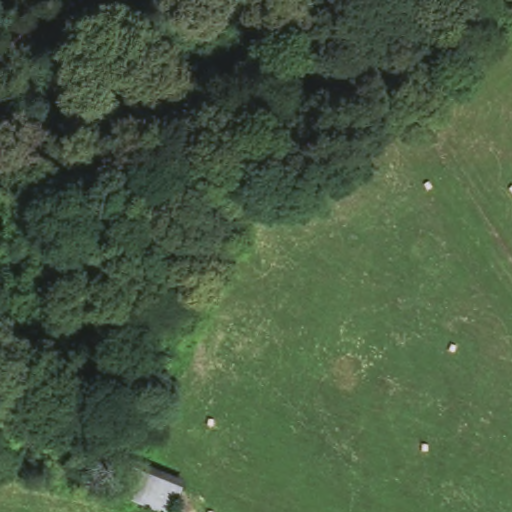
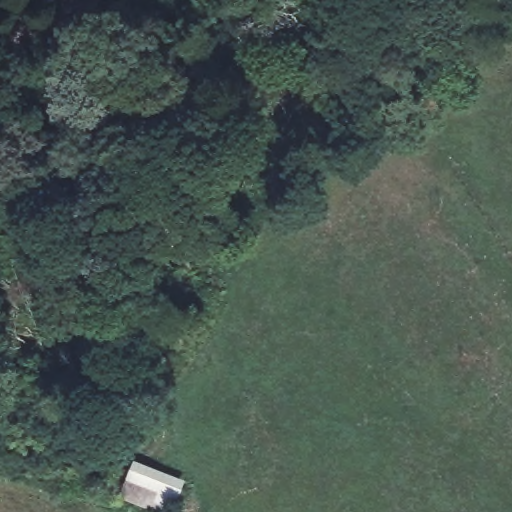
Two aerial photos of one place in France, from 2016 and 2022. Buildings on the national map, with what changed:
unchanged [(117,491),(132,454),(185,477),(170,512),(117,491)]

